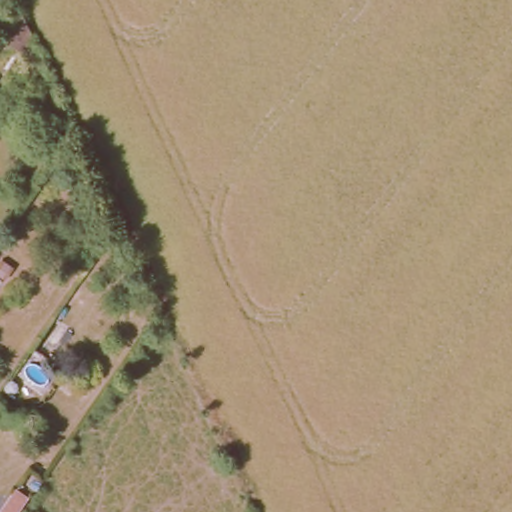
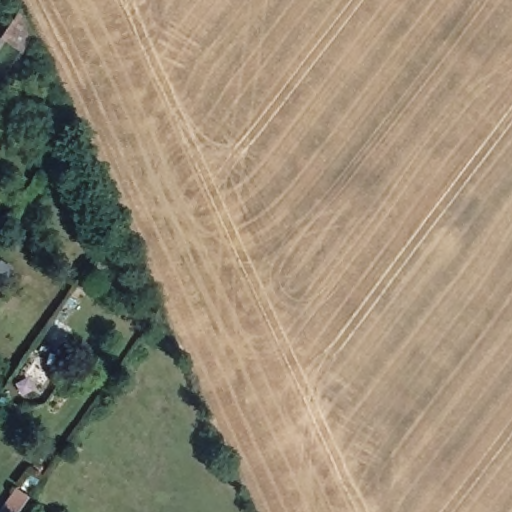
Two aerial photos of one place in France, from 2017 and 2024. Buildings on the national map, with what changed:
unchanged [(15,51),(0,39),(0,34),(20,6),(32,31),(15,51)]
unchanged [(14,512),(0,512),(0,506),(14,485),(26,494),(14,512)]

